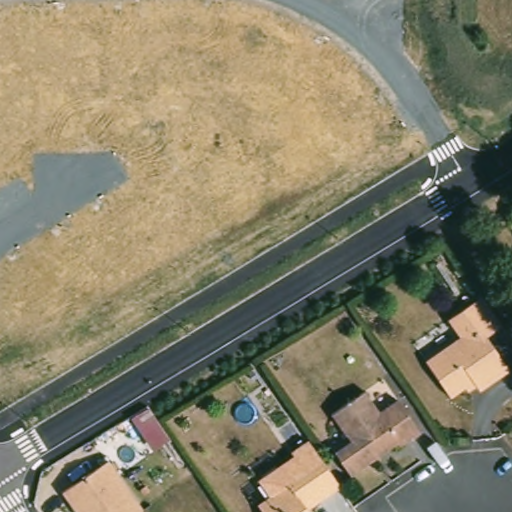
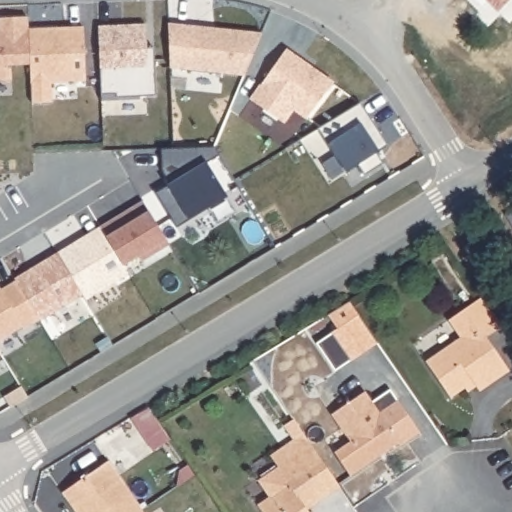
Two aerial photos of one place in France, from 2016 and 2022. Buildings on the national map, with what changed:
new [(28,17),(29,30),(30,65),(5,66),(6,80),(0,81),(0,18),(28,17)]
new [(216,29),(262,34),(245,76),(170,69),(169,24),(195,27),(216,29)]
new [(99,27),(146,25),(147,49),(155,48),(155,60),(157,96),(141,97),(141,100),(102,102),(102,95),(99,27)]
new [(66,29),(84,27),(86,81),(31,84),(30,65),(29,30),(61,29),(66,29)]
new [(286,51),(333,84),(307,119),(294,110),(284,124),(251,100),(286,51)]
new [(384,150),(376,155),(382,165),(363,177),(356,166),(345,174),(318,130),(361,104),(382,139),(387,147),(384,150)]
new [(162,171),(161,150),(215,147),(220,156),(207,164),(228,197),(177,229),(155,194),(170,185),(162,171)]
new [(45,330),(39,320),(16,282),(15,280),(57,254),(86,236),(100,228),(131,209),(143,202),(146,206),(169,246),(142,262),(139,257),(123,266),(129,275),(99,293),(86,301),(88,305),(45,330)]
new [(1,291),(16,282),(39,320),(23,330),(22,328),(0,341),(0,289),(1,291)]
unchanged [(449,321),(481,299),(502,328),(487,339),(508,368),(479,390),(464,370),(440,386),(424,363),(460,337),(449,321)]
new [(1,355),(0,356),(0,352),(1,355)]
unchanged [(365,393),(378,412),(397,400),(422,435),(404,448),(400,443),(351,477),(335,454),(351,442),(333,415),(365,393)]
new [(155,450),(148,439),(134,416),(151,406),(165,428),(172,440),(155,450)]
unchanged [(255,505),(267,496),(256,480),(292,456),(290,451),(305,442),(340,487),(306,512),(260,512),(255,505)]
unchanged [(61,500),(107,468),(138,512),(69,512),(61,500)]

